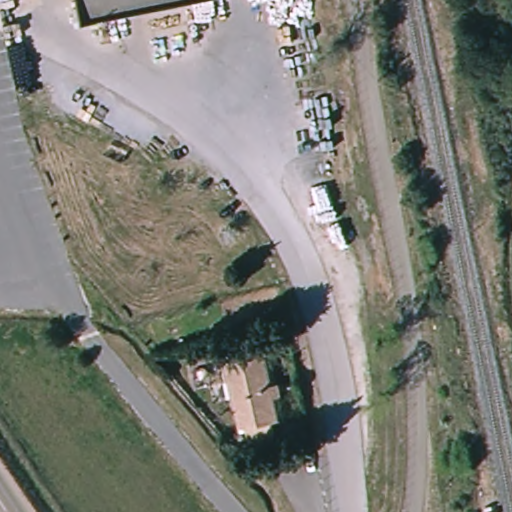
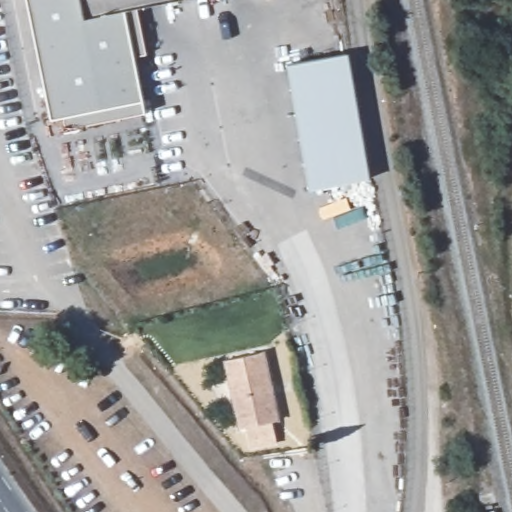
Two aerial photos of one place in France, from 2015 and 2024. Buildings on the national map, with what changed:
new [(138,102),(50,119),(25,0),(74,0),(77,16),(123,7),(138,102)]
unchanged [(77,16),(74,0),(154,0),(77,16)]
new [(362,177),(306,187),(284,69),(343,55),(362,177)]
unchanged [(265,351),(278,418),(275,419),(278,441),(249,446),(244,425),(237,426),(223,360),(265,351)]

